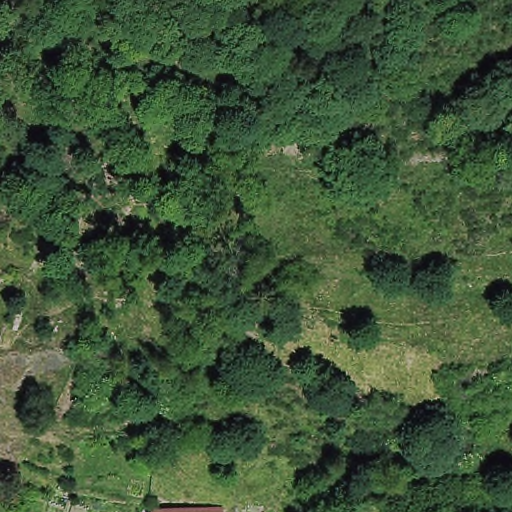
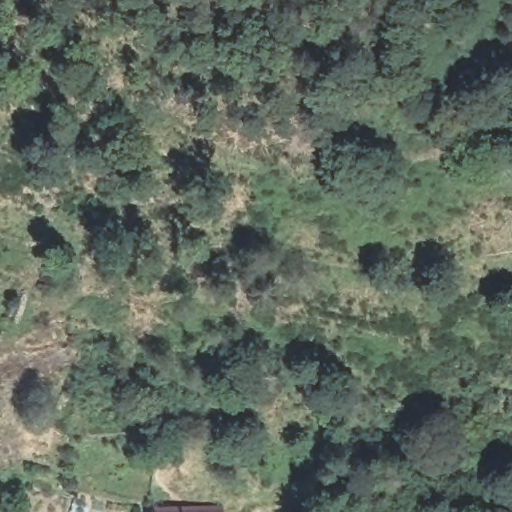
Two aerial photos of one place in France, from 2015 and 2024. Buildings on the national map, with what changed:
unchanged [(145,512),(145,510),(200,512),(215,512),(145,512)]

